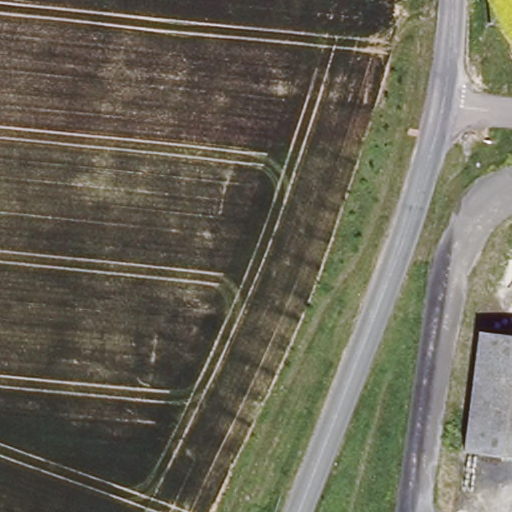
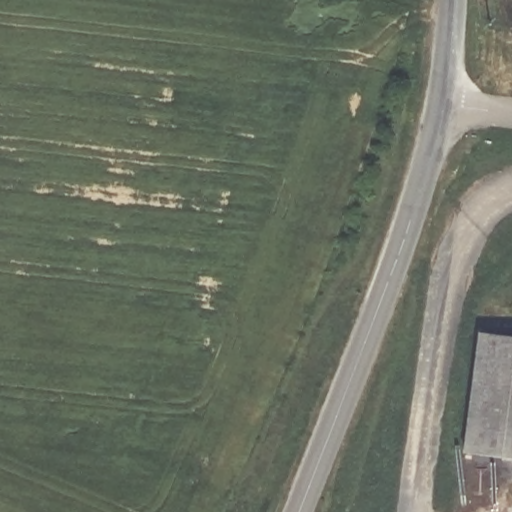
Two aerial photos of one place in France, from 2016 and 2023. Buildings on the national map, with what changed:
unchanged [(461,449),(482,333),(512,338),(512,458),(461,449)]

